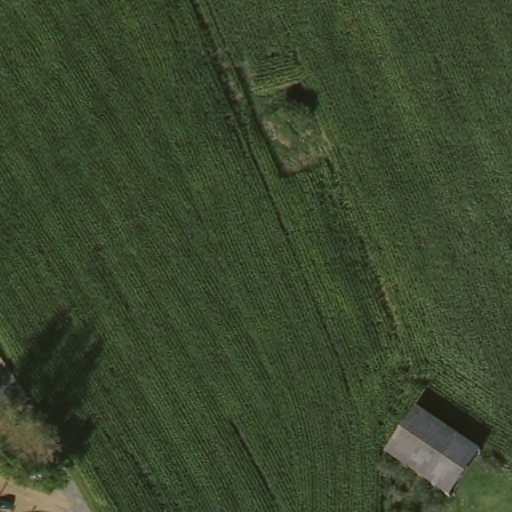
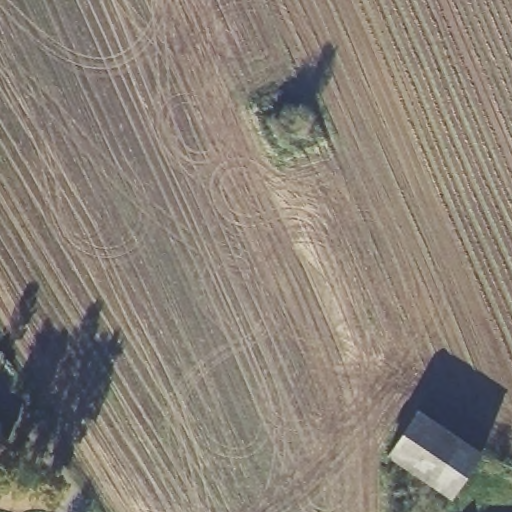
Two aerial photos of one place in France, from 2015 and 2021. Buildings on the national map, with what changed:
unchanged [(483,445),(455,490),(390,447),(420,403),(483,445)]

